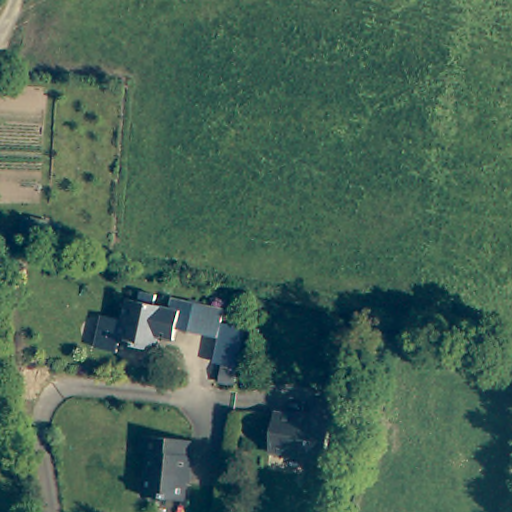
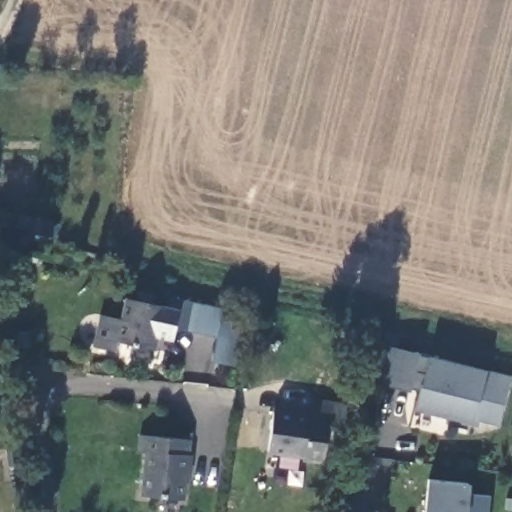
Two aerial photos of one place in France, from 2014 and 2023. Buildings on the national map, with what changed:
unchanged [(224,310),(218,336),(179,327),(183,311),(168,307),(170,297),(224,310)]
unchanged [(125,299),(168,307),(183,311),(179,327),(172,326),(166,354),(115,344),(125,299)]
new [(500,427),(480,422),(478,427),(414,411),(419,392),(410,390),(373,382),(383,344),(420,352),(428,356),(486,368),(512,376),(500,427)]
unchanged [(256,416),(291,420),(293,403),(328,407),(325,431),(311,429),(306,467),(286,465),(286,460),(250,455),(256,416)]
unchanged [(189,459),(193,460),(191,477),(188,476),(186,503),(144,499),(149,457),(141,457),(143,439),(191,444),(189,459)]
new [(428,480),(469,482),(469,493),(490,496),(488,512),(426,512),(428,480)]

